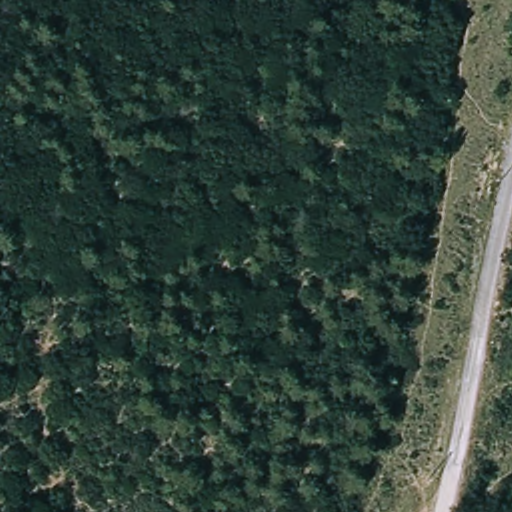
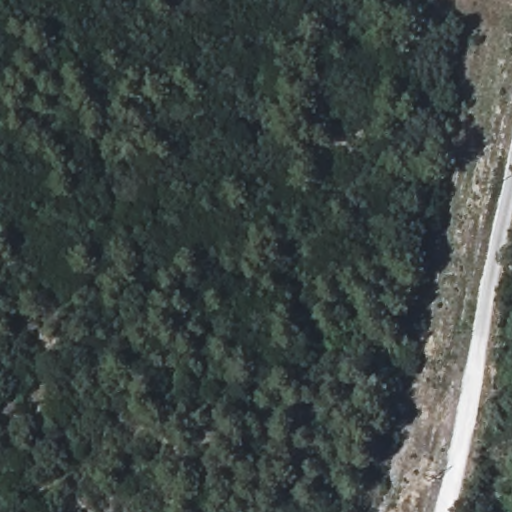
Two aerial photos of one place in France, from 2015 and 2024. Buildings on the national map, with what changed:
[]

